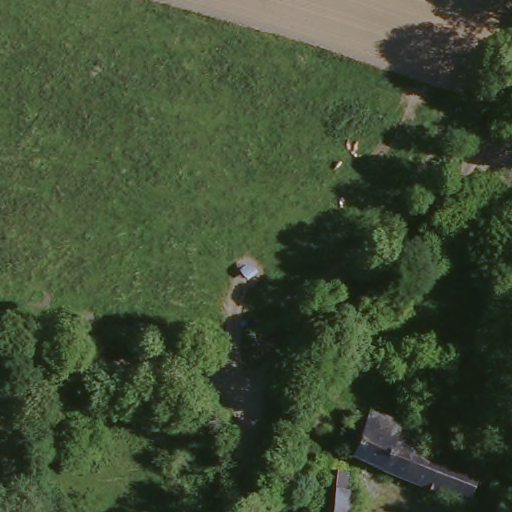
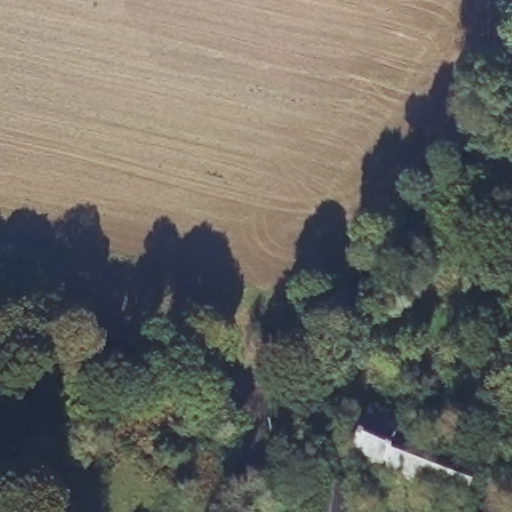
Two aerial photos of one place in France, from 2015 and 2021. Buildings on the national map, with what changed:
unchanged [(473,506),(357,456),(360,445),(346,440),(352,420),(368,426),(374,410),(407,422),(430,435),(426,446),(476,466),(486,470),(473,506)]
unchanged [(322,477),(323,466),(344,467),(344,480),(350,480),(346,512),(308,512),(312,477),(322,477)]
unchanged [(291,506),(291,512),(266,512),(266,507),(291,506)]

